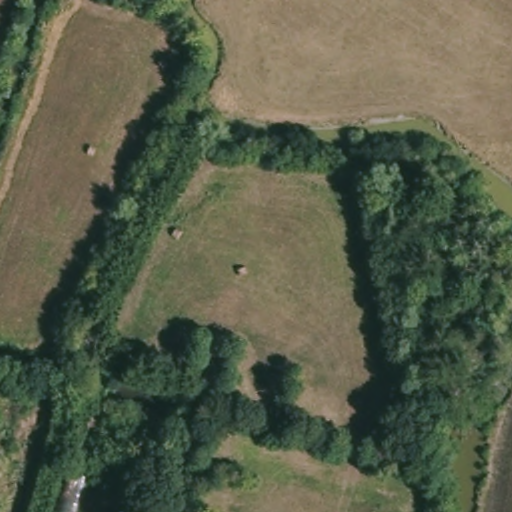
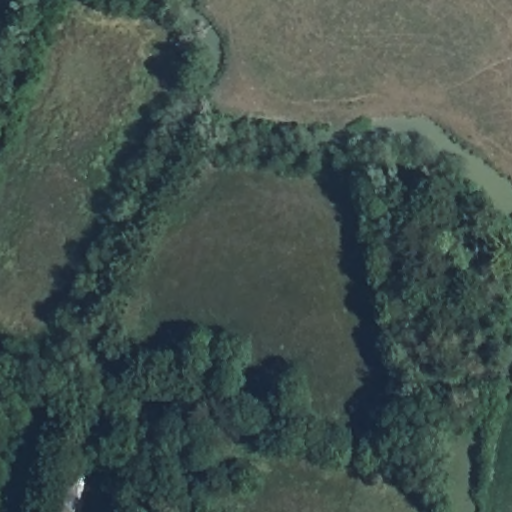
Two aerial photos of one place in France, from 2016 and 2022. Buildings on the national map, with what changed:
unchanged [(88,512),(58,512),(69,474),(96,484),(88,512)]

